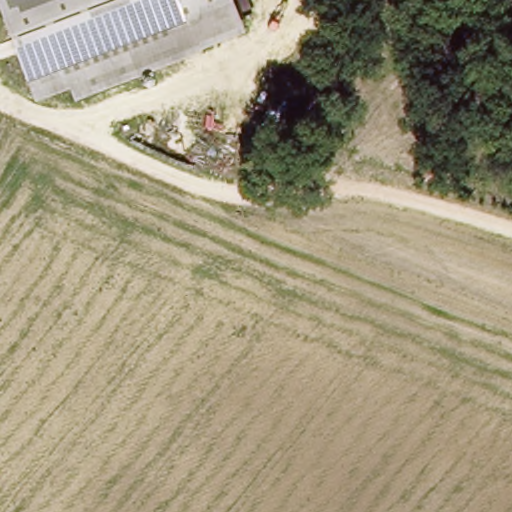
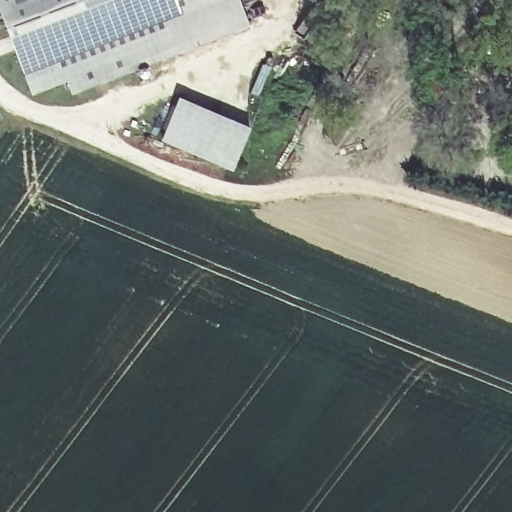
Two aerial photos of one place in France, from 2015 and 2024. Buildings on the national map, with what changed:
unchanged [(75,97),(70,82),(34,96),(0,6),(0,0),(243,0),(254,29),(75,97)]
new [(161,144),(180,100),(253,130),(232,173),(161,144)]

